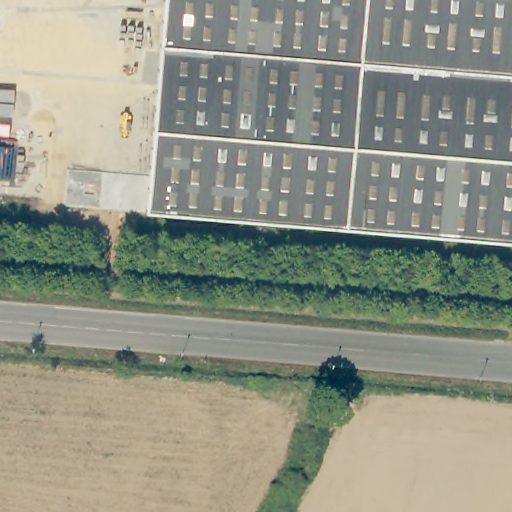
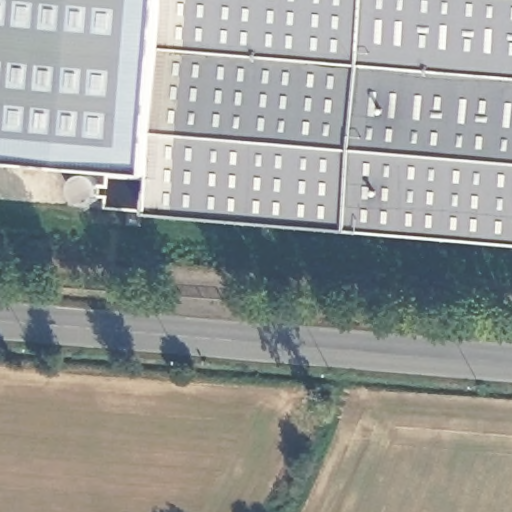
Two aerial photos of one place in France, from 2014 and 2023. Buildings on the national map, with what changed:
new [(0,160),(0,0),(161,0),(147,171),(0,160)]
demolished [(0,0),(67,0),(48,197),(0,194),(0,0)]
unchanged [(144,211),(147,171),(161,0),(512,0),(512,245),(144,211)]
new [(144,211),(106,208),(108,196),(104,195),(105,186),(109,185),(110,178),(146,179),(144,211)]

